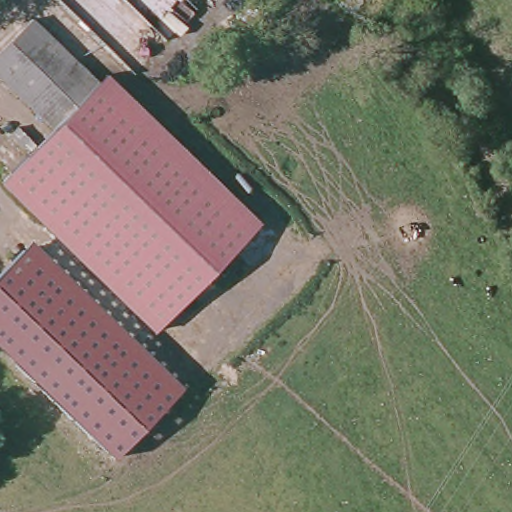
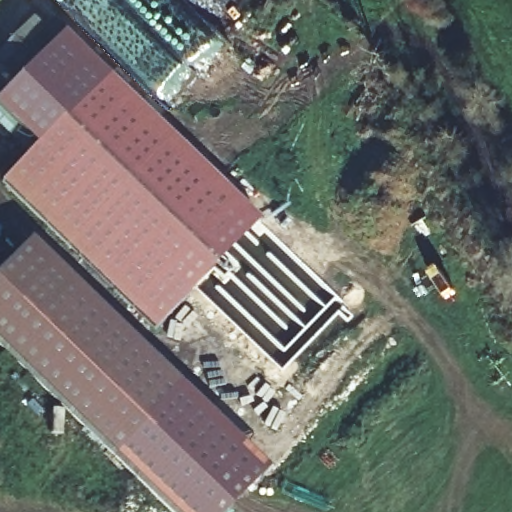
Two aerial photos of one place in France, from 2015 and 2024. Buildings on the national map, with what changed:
unchanged [(258,217),(152,328),(3,181),(52,124),(0,75),(0,47),(46,2),(107,70),(258,217)]
new [(345,305),(282,371),(197,288),(260,222),(345,305)]
unchanged [(115,458),(0,347),(0,270),(32,237),(183,386),(115,458)]
new [(183,386),(270,473),(231,512),(169,512),(115,458),(183,386)]

